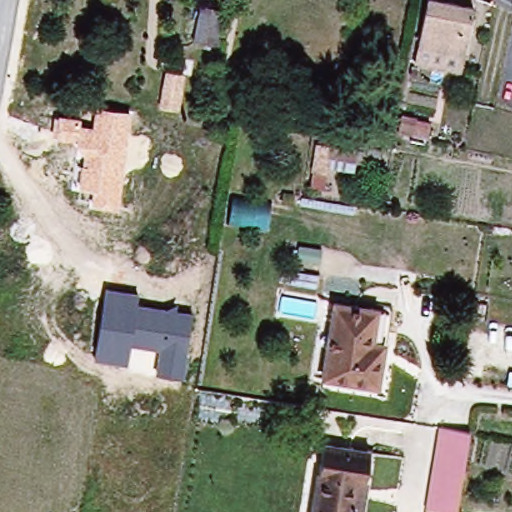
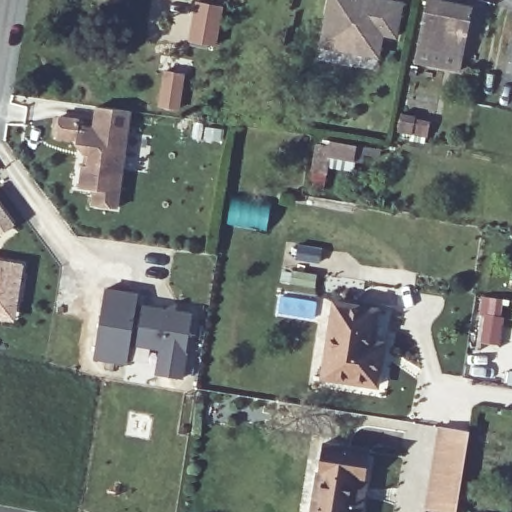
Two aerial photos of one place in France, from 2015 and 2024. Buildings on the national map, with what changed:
new [(397,40),(383,37),(379,60),(320,48),(328,0),(396,0),(403,1),(397,40)]
unchanged [(458,60),(415,51),(421,7),(465,16),(458,60)]
unchanged [(216,45),(195,42),(200,10),(222,14),(216,45)]
unchanged [(172,113),(157,111),(162,80),(177,83),(172,113)]
unchanged [(129,112),(116,209),(91,206),(93,191),(78,189),(81,158),(72,141),(56,140),(58,116),(81,119),(80,126),(92,126),(94,109),(129,112)]
unchanged [(327,170),(320,190),(305,187),(309,143),(351,147),(348,172),(327,170)]
new [(12,225),(0,234),(0,208),(12,225)]
new [(24,262),(15,320),(0,318),(0,259),(24,262)]
unchanged [(139,291),(137,305),(192,313),(183,378),(155,375),(157,350),(130,347),(127,365),(95,360),(105,287),(139,291)]
unchanged [(375,390),(318,379),(330,305),(370,311),(367,343),(382,346),(375,390)]
unchanged [(468,430),(457,512),(447,512),(425,508),(437,426),(468,430)]
unchanged [(357,512),(310,512),(320,442),(366,450),(357,512)]

